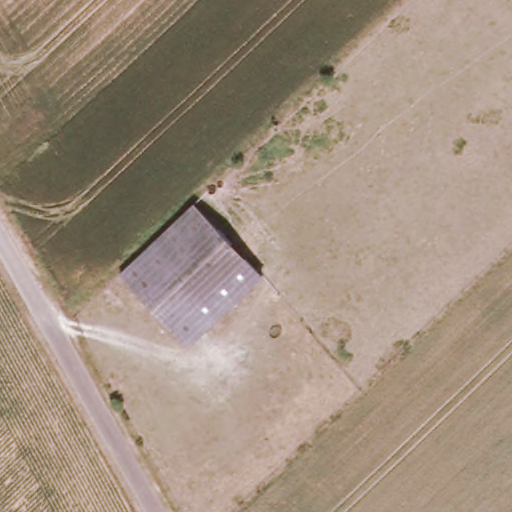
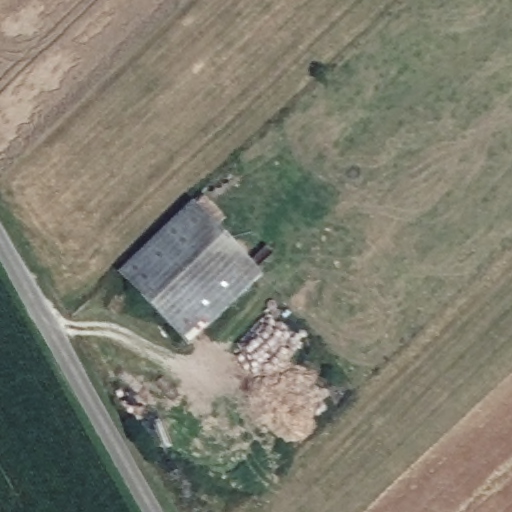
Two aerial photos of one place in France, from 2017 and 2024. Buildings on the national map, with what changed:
unchanged [(192,204),(261,280),(188,349),(118,275),(192,204)]

